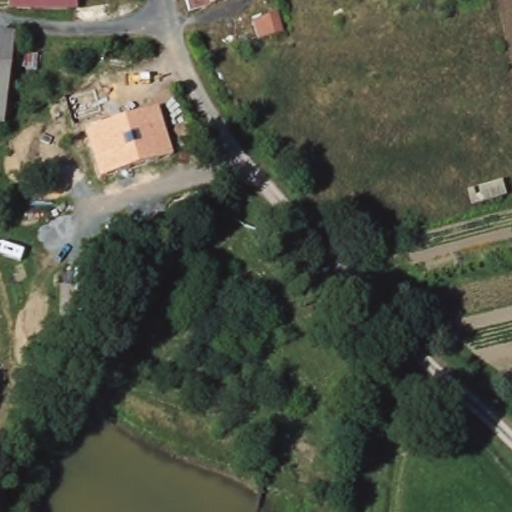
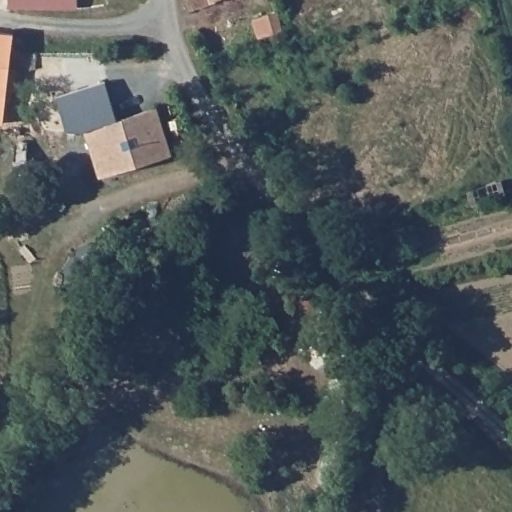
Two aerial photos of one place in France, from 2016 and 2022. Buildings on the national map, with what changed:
unchanged [(13,7),(13,0),(82,0),(82,9),(13,7)]
unchanged [(189,10),(186,0),(219,0),(211,3),(189,10)]
unchanged [(277,11),(282,31),(258,39),(253,20),(277,11)]
unchanged [(18,35),(9,112),(8,124),(0,122),(0,32),(18,35)]
unchanged [(42,54),(41,69),(20,67),(20,64),(21,52),(42,54)]
new [(90,130),(83,131),(67,128),(56,95),(106,81),(117,121),(90,130)]
unchanged [(137,115),(162,107),(177,155),(105,177),(90,130),(137,115)]
unchanged [(363,243),(371,256),(361,261),(354,248),(363,243)]

